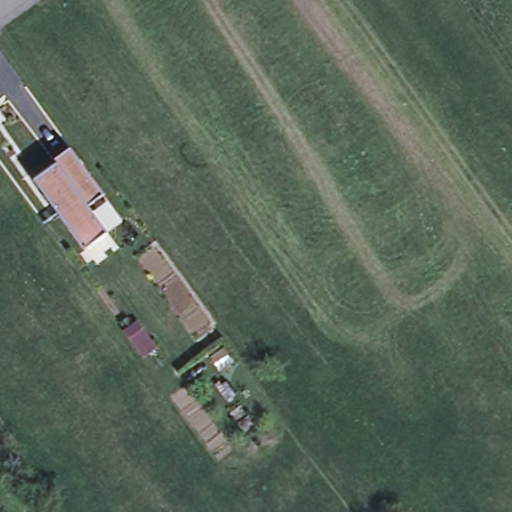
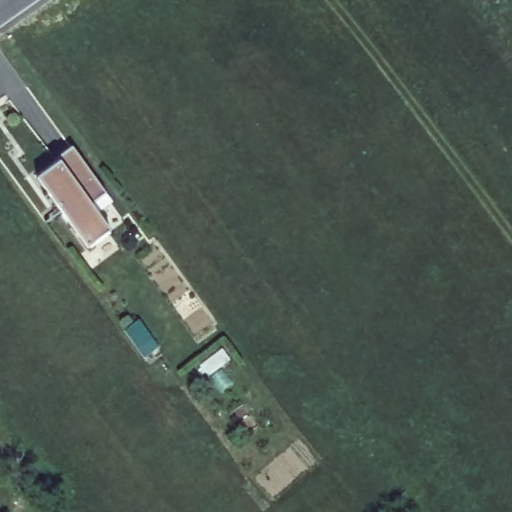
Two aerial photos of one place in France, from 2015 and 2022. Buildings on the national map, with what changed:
unchanged [(59,159),(55,154),(71,143),(105,189),(90,200),(110,227),(86,243),(36,175),(59,159)]

